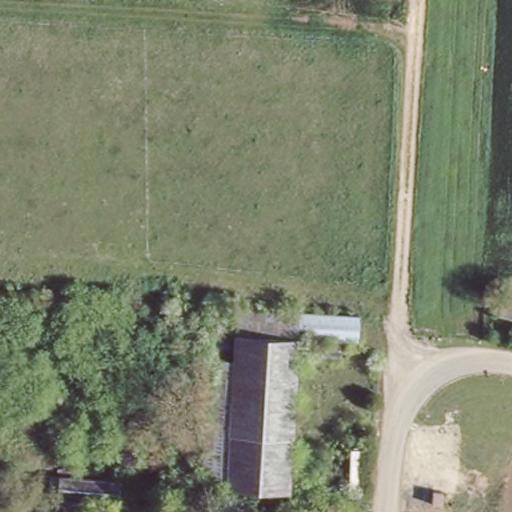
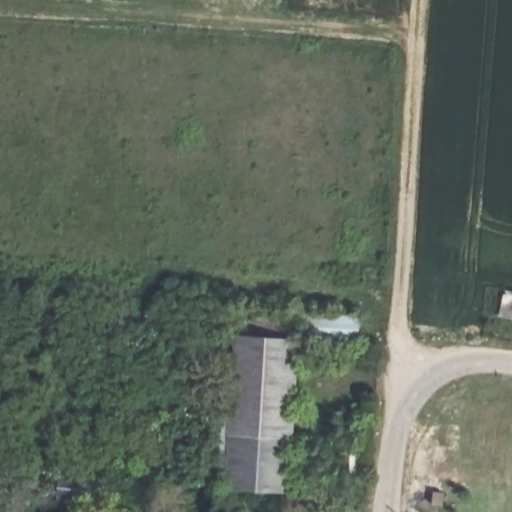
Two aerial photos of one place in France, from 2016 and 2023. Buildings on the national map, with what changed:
unchanged [(498,317),(500,288),(512,289),(512,319),(498,317)]
unchanged [(288,490),(223,483),(233,366),(210,365),(212,335),(241,337),(243,306),(368,315),(365,348),(300,342),(288,490)]
unchanged [(202,490),(210,365),(233,366),(223,483),(223,492),(202,490)]
unchanged [(53,471),(112,477),(110,500),(52,495),(53,471)]

